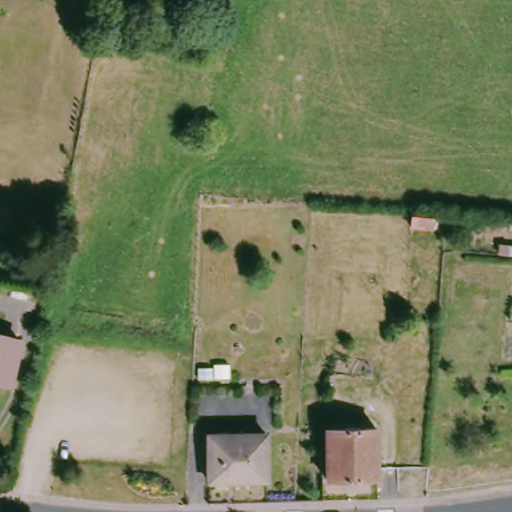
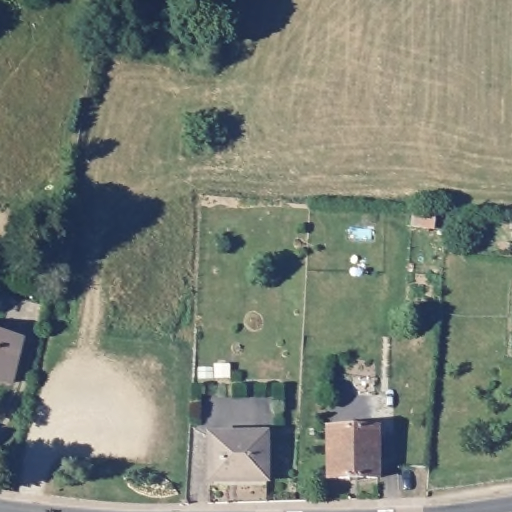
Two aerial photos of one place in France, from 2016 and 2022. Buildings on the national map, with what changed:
unchanged [(0,380),(0,335),(19,340),(9,382),(0,380)]
unchanged [(327,432),(378,432),(377,483),(327,482),(327,432)]
unchanged [(266,483),(209,484),(209,437),(267,436),(266,483)]

